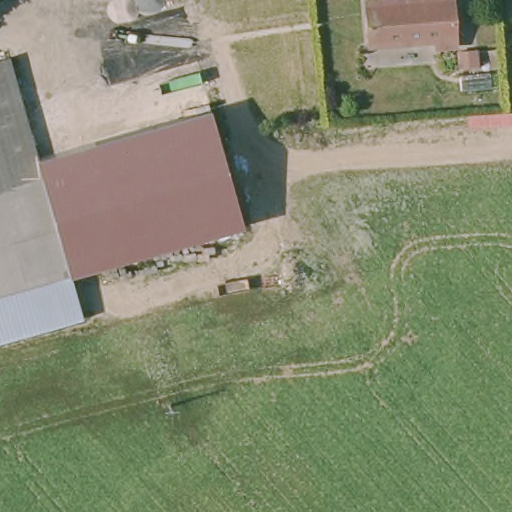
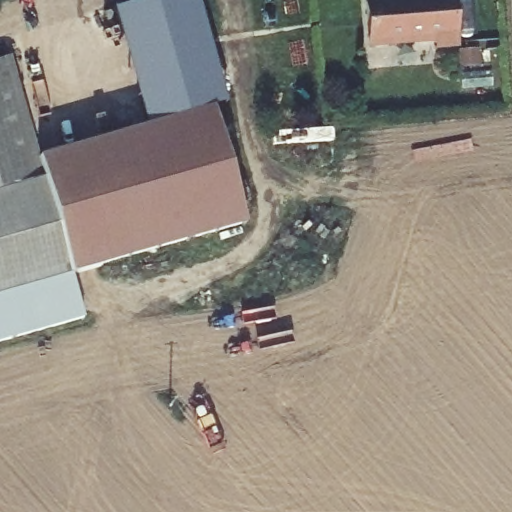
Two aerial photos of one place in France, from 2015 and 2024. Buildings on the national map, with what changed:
new [(147,0),(197,0),(226,107),(210,110),(144,129),(112,9),(147,0)]
unchanged [(437,41),(370,46),(367,4),(407,0),(453,0),(457,47),(437,48),(437,41)]
unchanged [(4,58),(29,147),(65,274),(0,292),(0,59),(4,58)]
unchanged [(244,226),(71,277),(39,157),(210,110),(244,226)]
unchanged [(0,339),(0,292),(65,274),(77,318),(0,339)]

